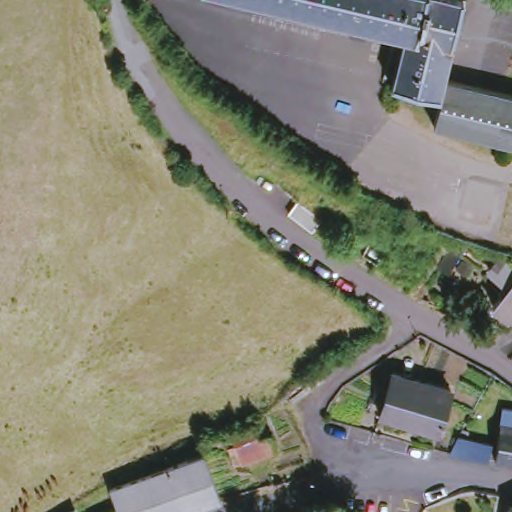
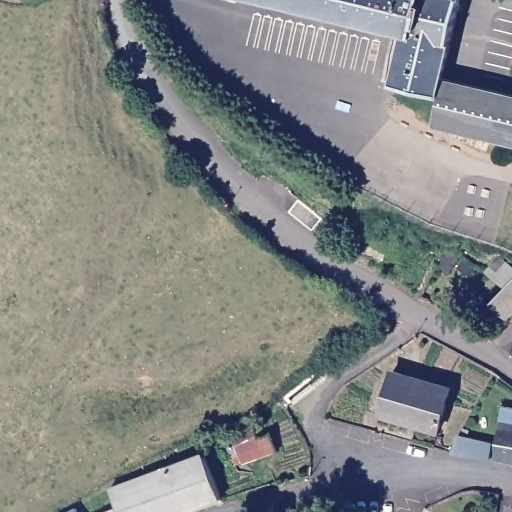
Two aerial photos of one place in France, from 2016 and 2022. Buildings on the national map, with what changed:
unchanged [(387,81),(402,28),(282,0),(458,0),(438,76),(434,92),(387,81)]
unchanged [(427,120),(434,92),(438,76),(512,96),(512,143),(427,120)]
unchanged [(511,163),(512,159),(512,163),(511,163)]
unchanged [(290,204),(300,193),(322,212),(314,224),(290,204)]
unchanged [(504,313),(490,300),(505,282),(487,267),(497,255),(512,269),(512,308),(504,313)]
unchanged [(448,382),(437,426),(380,411),(390,368),(448,382)]
unchanged [(504,463),(505,457),(493,455),(501,403),(512,405),(512,464),(504,463)]
unchanged [(231,468),(223,445),(229,442),(230,432),(249,426),(251,436),(271,432),(275,451),(231,468)]
unchanged [(457,432),(488,439),(484,458),(445,450),(457,432)]
unchanged [(162,461),(199,446),(215,493),(180,510),(162,461)]
unchanged [(105,486),(162,461),(180,510),(175,512),(87,512),(112,503),(105,486)]

